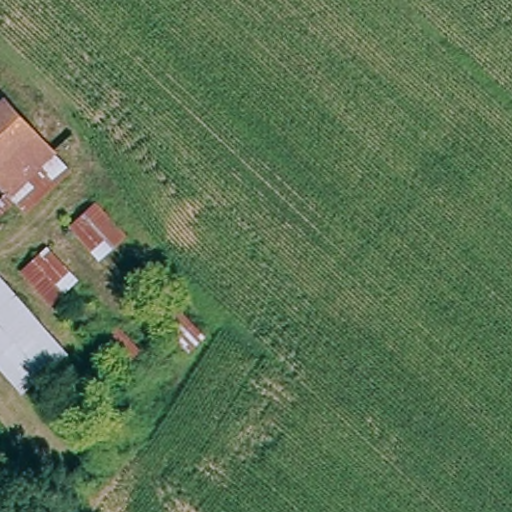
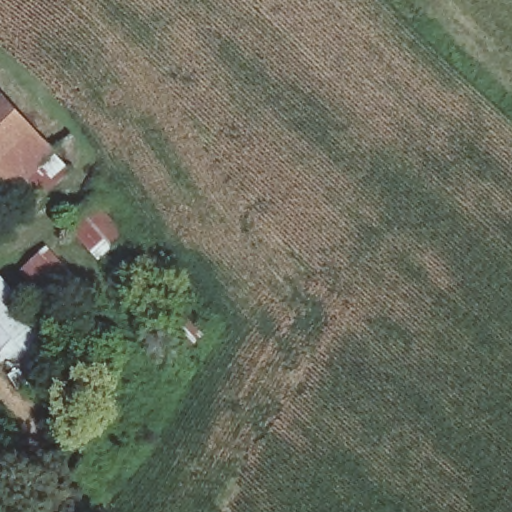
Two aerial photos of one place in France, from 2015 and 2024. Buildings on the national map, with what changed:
unchanged [(52,151),(9,191),(0,182),(0,96),(40,139),(52,151)]
unchanged [(52,151),(70,171),(26,214),(15,201),(0,215),(0,182),(9,191),(52,151)]
unchanged [(99,258),(69,225),(95,200),(126,235),(99,258)]
unchanged [(47,245),(77,280),(50,303),(20,271),(47,245)]
unchanged [(0,368),(0,277),(68,352),(22,392),(0,368)]
unchanged [(161,287),(182,311),(166,326),(144,304),(161,287)]

